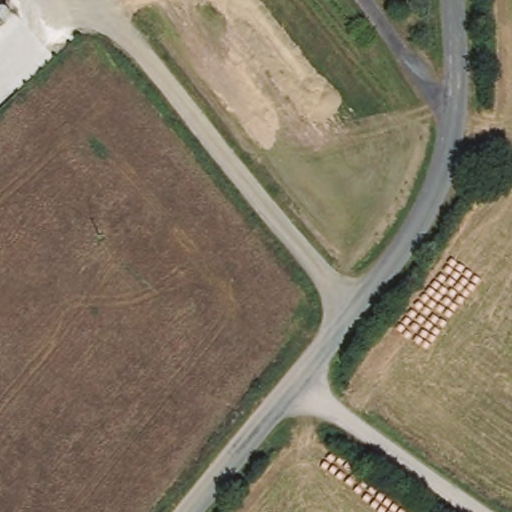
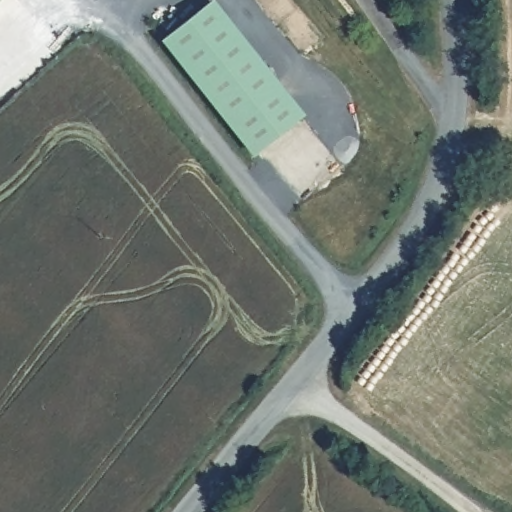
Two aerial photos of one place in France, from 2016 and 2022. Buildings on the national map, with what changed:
new [(205,12),(292,131),(244,167),(156,47),(205,12)]

